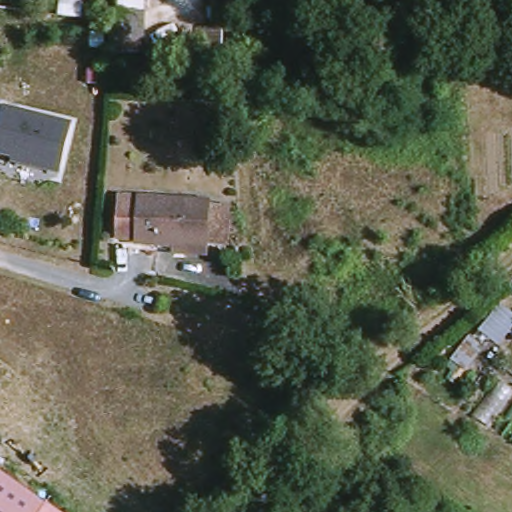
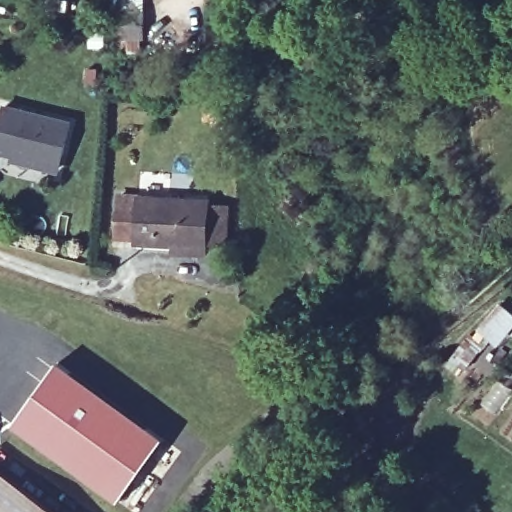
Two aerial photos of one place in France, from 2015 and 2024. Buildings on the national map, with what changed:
unchanged [(203,4),(213,4),(213,0),(225,0),(223,67),(202,67),(203,4)]
unchanged [(119,54),(118,11),(151,12),(151,55),(119,54)]
unchanged [(72,122),(62,172),(0,158),(0,131),(6,105),(72,122)]
unchanged [(191,248),(151,244),(152,239),(130,236),(134,195),(220,203),(216,242),(215,254),(190,252),(191,248)]
new [(59,358),(166,431),(123,494),(16,420),(59,358)]
unchanged [(58,512),(0,512),(0,472),(58,512)]

